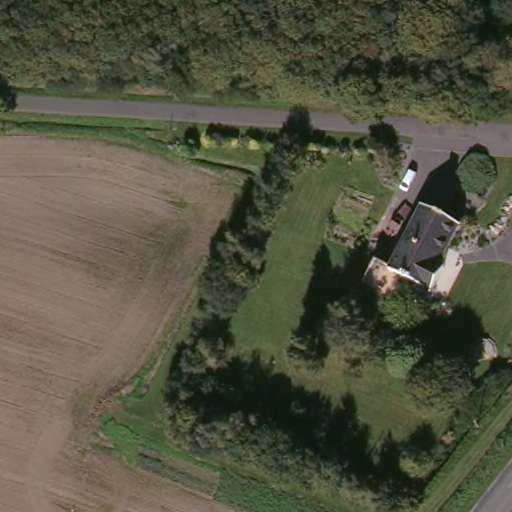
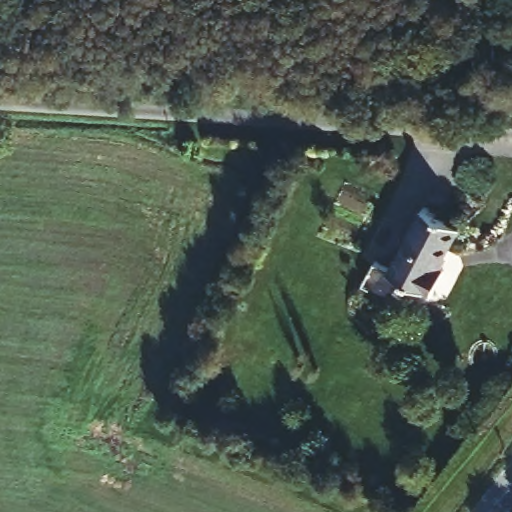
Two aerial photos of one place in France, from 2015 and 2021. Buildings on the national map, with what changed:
unchanged [(435,268),(440,272),(427,294),(385,272),(424,206),(457,228),(435,268)]

